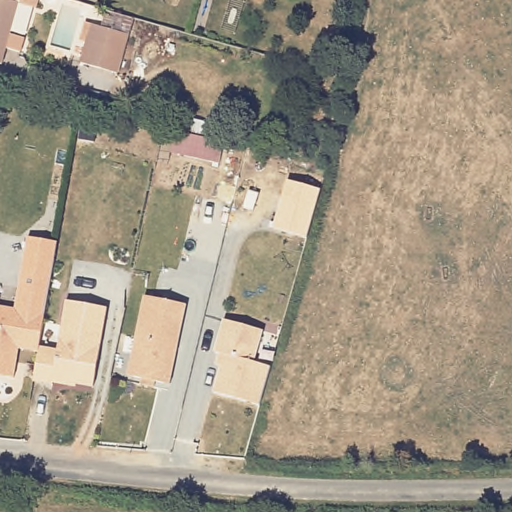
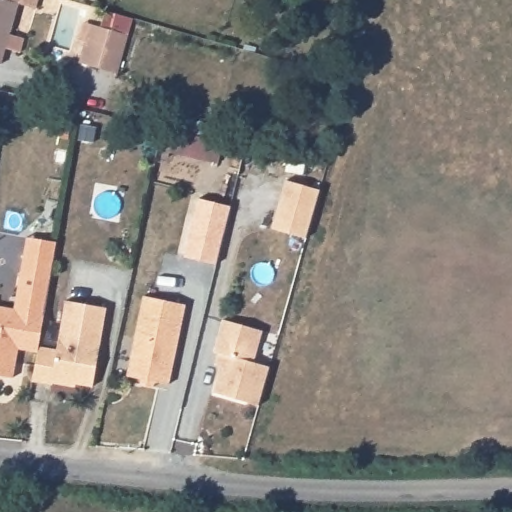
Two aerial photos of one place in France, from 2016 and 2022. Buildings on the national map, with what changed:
unchanged [(0,68),(0,0),(20,0),(0,68)]
unchanged [(82,63),(94,24),(130,34),(119,73),(82,63)]
unchanged [(275,229),(289,181),(322,190),(309,238),(275,229)]
new [(199,199),(231,207),(217,265),(184,258),(199,199)]
unchanged [(0,375),(0,306),(13,308),(16,287),(22,253),(25,235),(55,240),(51,258),(37,345),(36,347),(36,350),(16,347),(15,356),(11,376),(0,375)]
unchanged [(144,382),(145,376),(130,373),(147,293),(189,302),(172,382),(158,379),(157,384),(144,382)]
unchanged [(51,381),(50,383),(31,379),(34,362),(36,350),(36,347),(37,345),(55,348),(64,298),(105,305),(91,384),(75,381),(74,385),(51,381)]
unchanged [(223,369),(219,368),(221,357),(216,355),(226,323),(265,333),(255,365),(272,370),(270,380),(262,408),(216,395),(223,369)]

